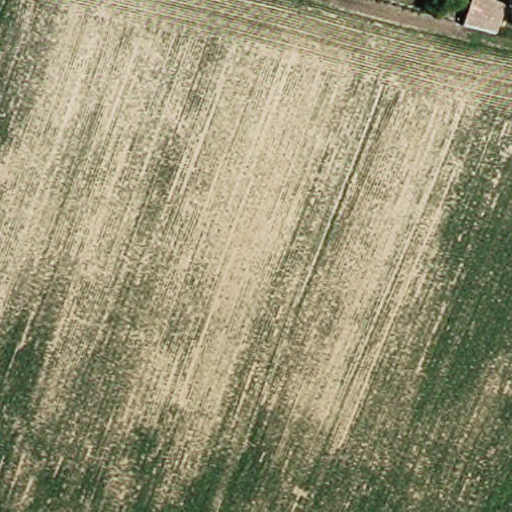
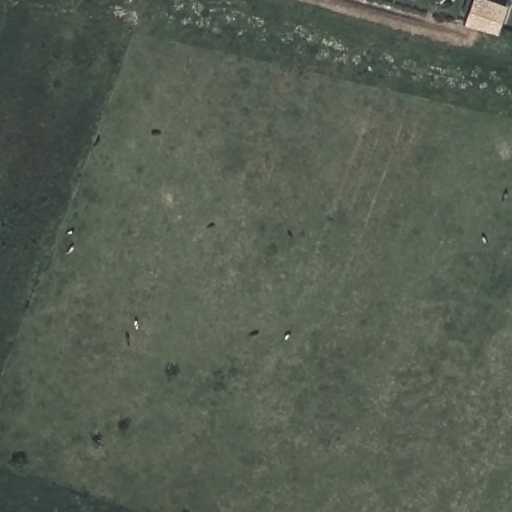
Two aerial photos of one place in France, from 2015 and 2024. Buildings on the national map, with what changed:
unchanged [(473,3),(506,11),(496,39),(463,31),(473,3)]

